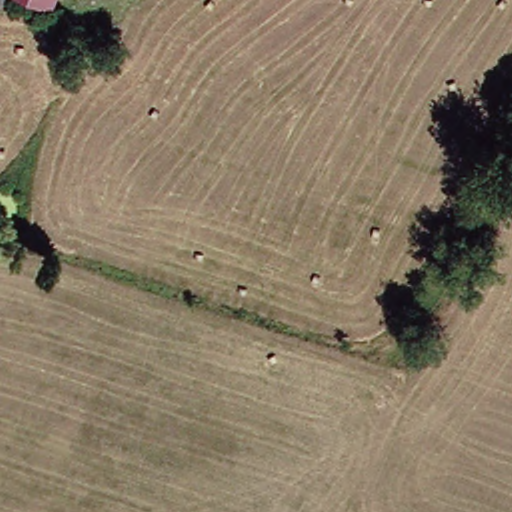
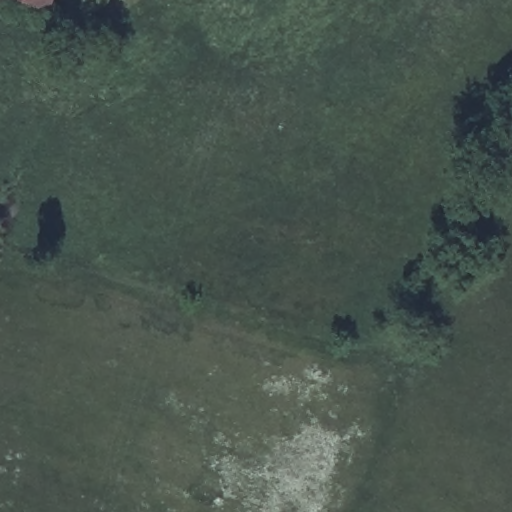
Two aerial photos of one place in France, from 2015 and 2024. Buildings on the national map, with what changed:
unchanged [(48,12),(21,0),(54,0),(48,12)]

